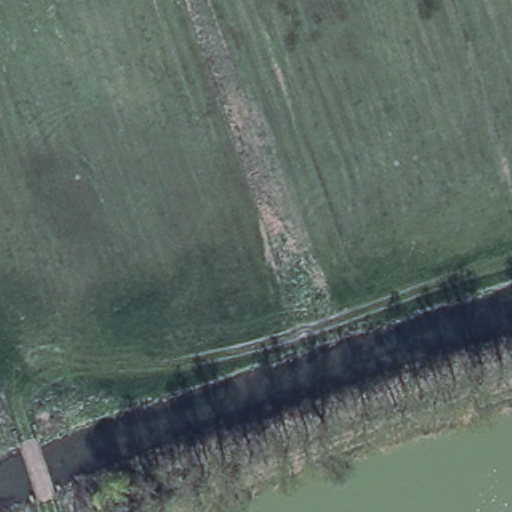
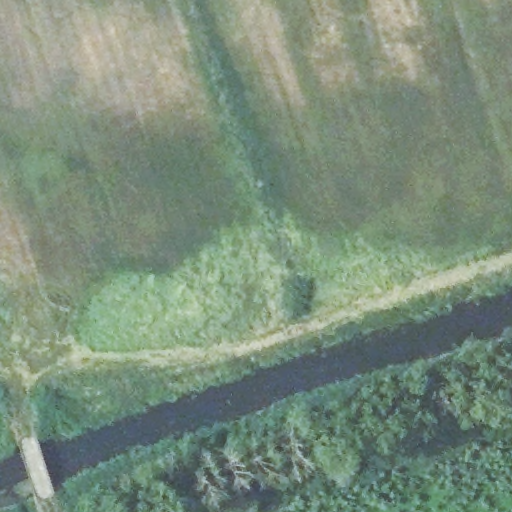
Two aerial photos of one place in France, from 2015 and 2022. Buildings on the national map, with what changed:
unchanged [(144,509),(144,512),(134,512),(144,509)]

